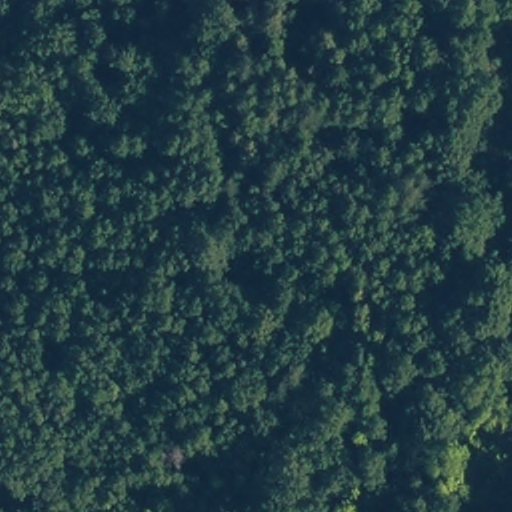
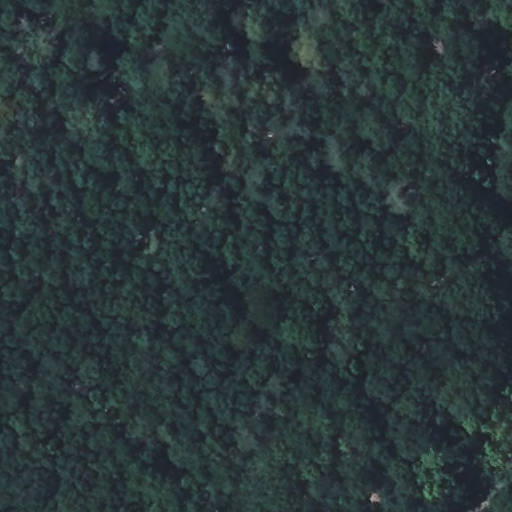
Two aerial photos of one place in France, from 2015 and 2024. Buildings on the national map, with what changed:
[]

